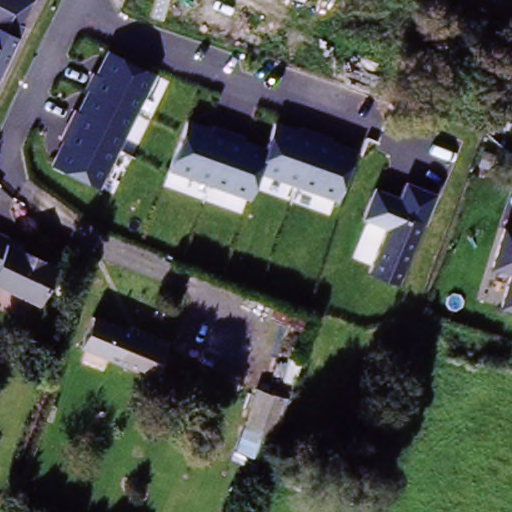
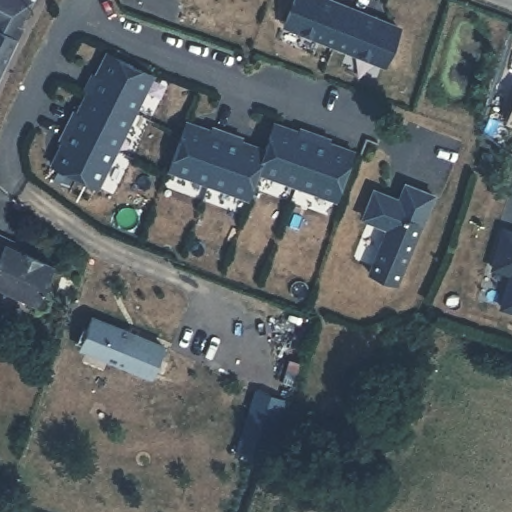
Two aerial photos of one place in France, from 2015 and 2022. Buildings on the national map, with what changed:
unchanged [(0,29),(0,0),(25,0),(34,5),(16,36),(10,34),(0,29)]
unchanged [(25,0),(36,0),(34,5),(25,0)]
new [(382,61),(282,20),(291,0),(337,0),(397,25),(382,61)]
demolished [(288,0),(309,0),(306,7),(288,0)]
unchanged [(16,36),(0,70),(0,29),(16,36)]
unchanged [(154,75),(97,190),(49,162),(61,140),(57,139),(72,108),(77,110),(87,88),(84,85),(91,71),(96,73),(108,50),(154,75)]
new [(512,112),(512,130),(507,127),(512,112)]
unchanged [(210,125),(212,121),(247,135),(245,139),(262,145),(272,120),(299,127),(301,123),(333,135),(330,141),(357,150),(340,200),(259,174),(248,200),(165,169),(185,119),(210,125)]
unchanged [(397,196),(403,181),(435,193),(420,231),(395,220),(390,231),(361,219),(372,187),(397,196)]
unchanged [(371,278),(395,220),(420,231),(396,290),(371,278)]
unchanged [(510,230),(512,230),(512,273),(498,268),(510,230)]
unchanged [(36,311),(0,295),(0,245),(6,247),(21,254),(18,259),(52,275),(36,311)]
unchanged [(512,290),(512,309),(507,307),(512,290)]
unchanged [(82,352),(93,325),(165,356),(153,383),(82,352)]
unchanged [(275,438),(272,437),(244,428),(255,395),(285,405),(286,405),(275,438)]

